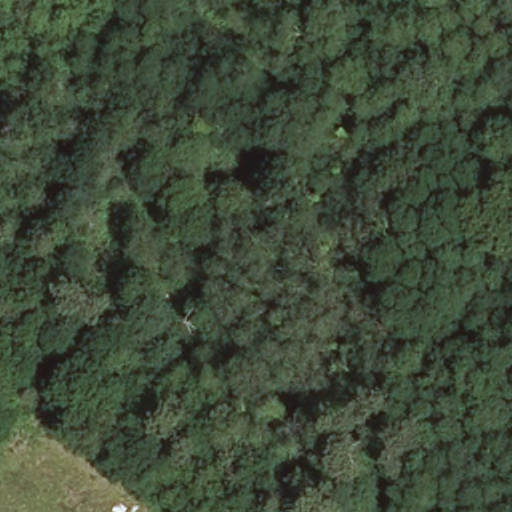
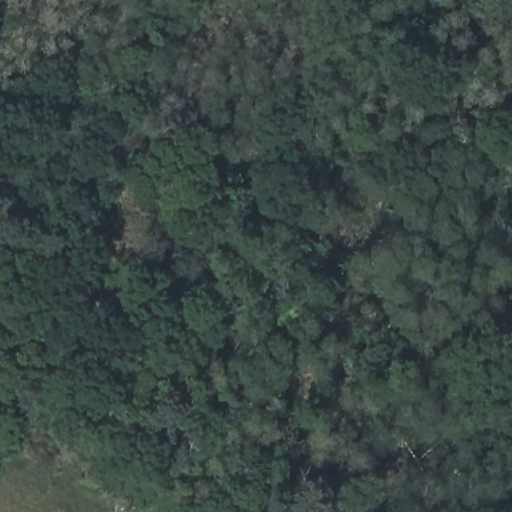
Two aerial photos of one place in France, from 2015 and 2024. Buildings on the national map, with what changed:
[]

